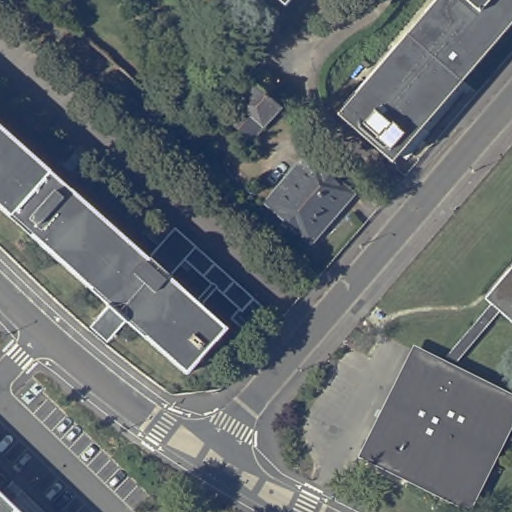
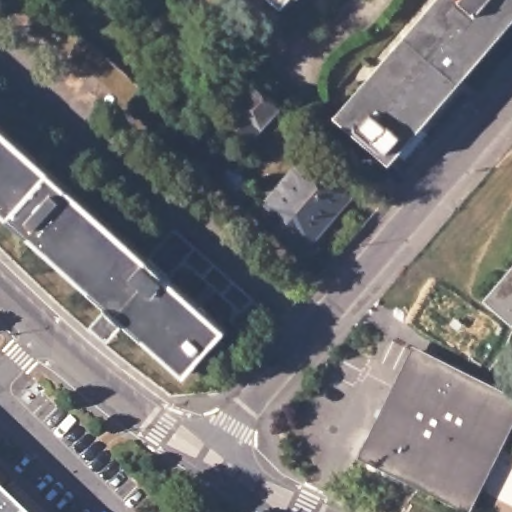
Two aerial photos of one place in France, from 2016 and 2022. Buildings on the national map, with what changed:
unchanged [(284,0),(297,0),(292,6),(284,0)]
unchanged [(442,0),(512,0),(512,29),(398,160),(343,113),(442,0)]
unchanged [(253,138),(228,116),(238,105),(235,103),(251,86),(253,84),(281,106),(278,110),(253,138)]
unchanged [(245,308),(188,261),(174,275),(230,326),(189,370),(130,321),(111,340),(94,327),(114,305),(0,201),(0,123),(152,258),(178,229),(257,292),(245,308)]
unchanged [(272,201),(313,155),(357,193),(335,218),(330,214),(311,236),(272,201)]
unchanged [(497,305),(492,298),(512,275),(512,317),(505,310),(470,350),(462,343),(497,305)]
unchanged [(250,333),(236,320),(248,306),(263,319),(250,333)]
unchanged [(422,347),(446,360),(462,343),(470,350),(455,365),(512,395),(512,422),(470,505),(368,453),(422,347)]
unchanged [(19,512),(0,512),(0,494),(19,512)]

